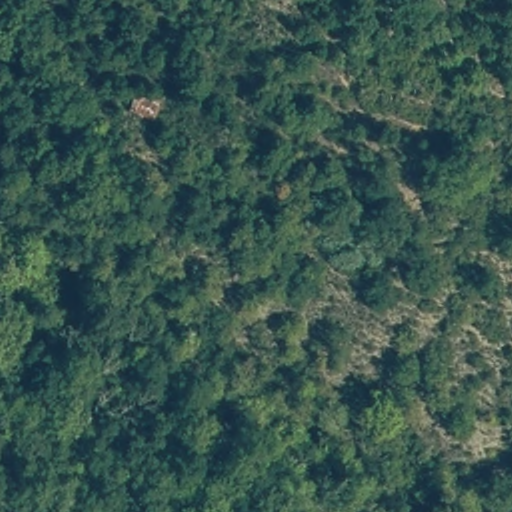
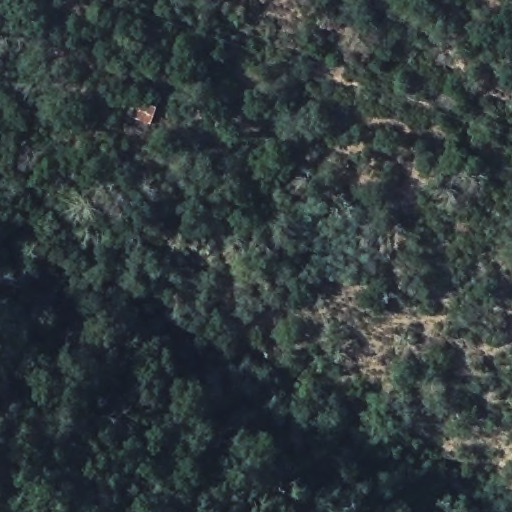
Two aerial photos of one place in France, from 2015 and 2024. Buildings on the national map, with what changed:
unchanged [(135,98),(159,106),(153,128),(128,122),(135,98)]

